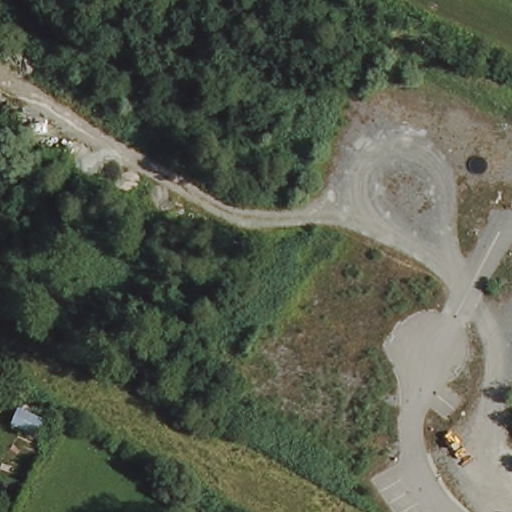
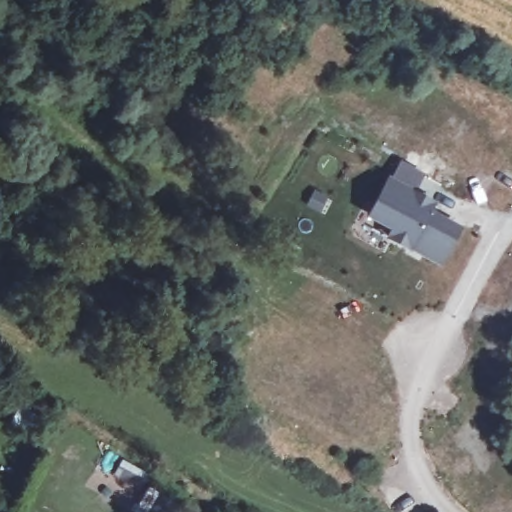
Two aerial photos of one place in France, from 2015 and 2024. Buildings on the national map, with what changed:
new [(391,229),(367,218),(387,177),(437,204),(433,211),(463,228),(442,267),(411,251),(385,238),(391,229)]

